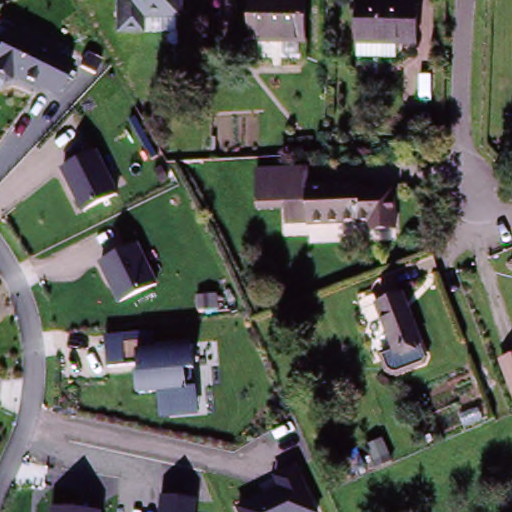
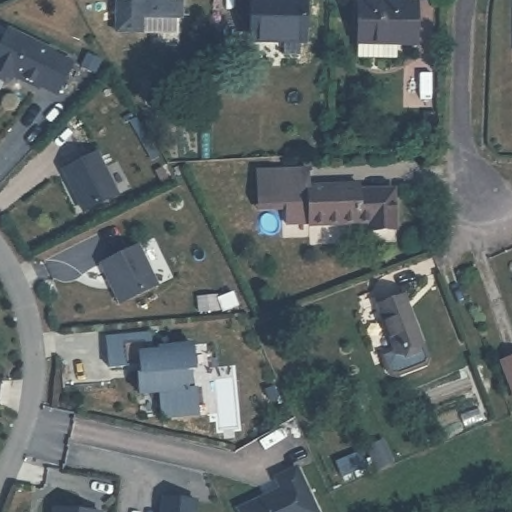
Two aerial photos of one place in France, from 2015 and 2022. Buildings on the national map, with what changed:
unchanged [(181,17),(177,17),(176,34),(117,34),(118,0),(181,0),(181,17)]
unchanged [(417,0),(417,40),(385,41),(386,56),(360,56),(361,1),(417,0)]
unchanged [(302,1),(302,46),(252,46),(254,1),(302,1)]
unchanged [(76,56),(56,98),(12,78),(8,84),(0,79),(0,34),(4,24),(76,56)]
unchanged [(122,194),(85,210),(63,163),(100,146),(122,194)]
unchanged [(257,204),(256,172),(306,170),(306,185),(354,183),(360,182),(362,222),(357,223),(302,225),(301,218),(281,219),(282,212),(257,211),(257,204)]
unchanged [(161,289),(120,304),(101,259),(142,244),(161,289)]
unchanged [(404,297),(420,345),(393,354),(376,306),(404,297)]
unchanged [(153,329),(154,343),(191,340),(198,418),(161,419),(157,393),(138,392),(135,363),(108,363),(105,332),(153,329)]
unchanged [(499,359),(512,354),(512,392),(499,359)]
unchanged [(273,473),(298,463),(318,512),(241,512),(238,505),(279,488),(273,473)]
unchanged [(197,512),(159,512),(161,494),(198,498),(197,512)]
unchanged [(101,512),(53,512),(54,505),(101,508),(101,512)]

